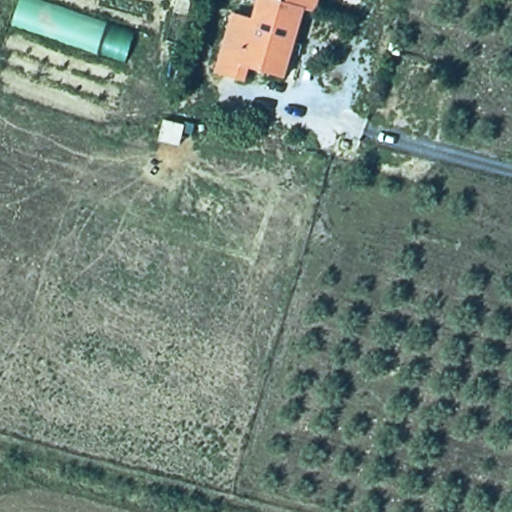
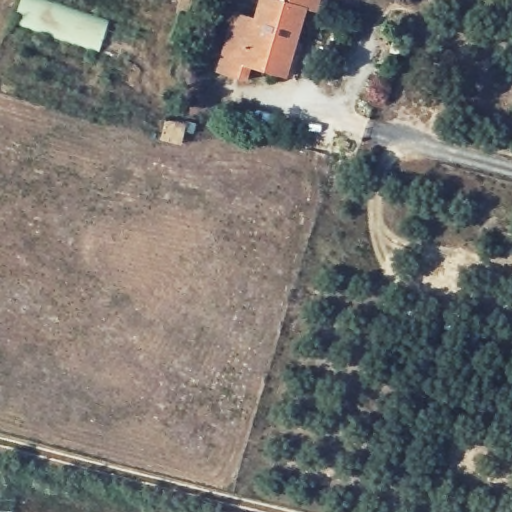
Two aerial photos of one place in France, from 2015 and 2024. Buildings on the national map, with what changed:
unchanged [(20,0),(38,0),(135,33),(125,64),(13,25),(20,0)]
unchanged [(239,81),(212,73),(230,11),(249,17),(254,0),(314,0),(311,11),(301,9),(289,50),(281,77),(270,74),(243,66),(239,81)]

